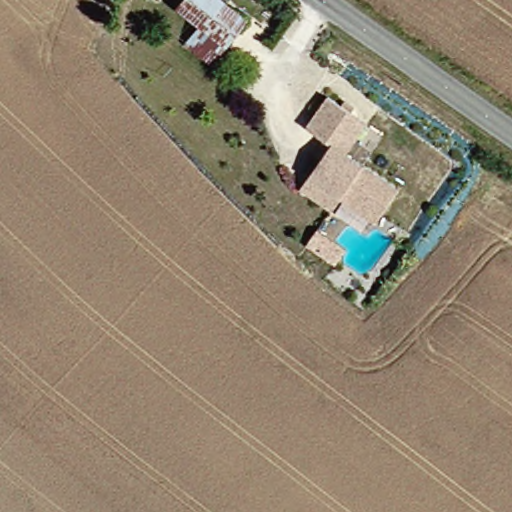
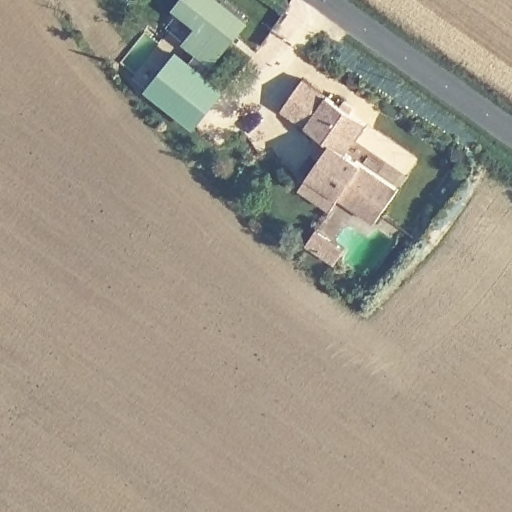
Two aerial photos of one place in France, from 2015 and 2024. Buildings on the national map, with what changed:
unchanged [(177,44),(190,30),(169,11),(179,0),(209,0),(240,25),(204,67),(177,44)]
new [(178,50),(226,89),(195,129),(146,89),(178,50)]
new [(283,110),(303,80),(325,97),(305,128),(283,110)]
unchanged [(299,190),(307,177),(320,157),(314,152),(321,140),(305,128),(325,97),(339,105),(341,101),(352,108),(349,112),(364,123),(345,154),(397,190),(374,222),(339,198),(330,211),(299,190)]
unchanged [(307,242),(309,238),(316,227),(345,247),(334,261),(307,242)]

